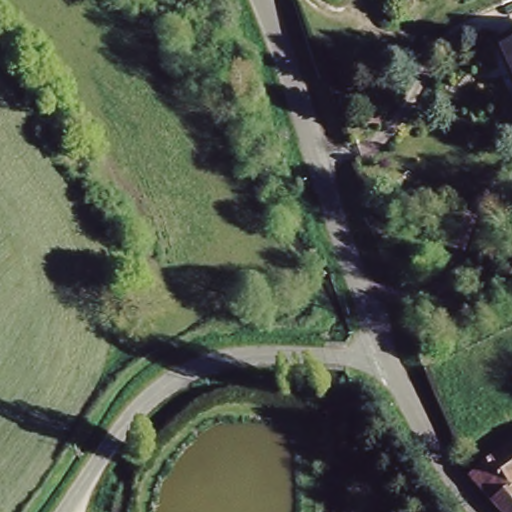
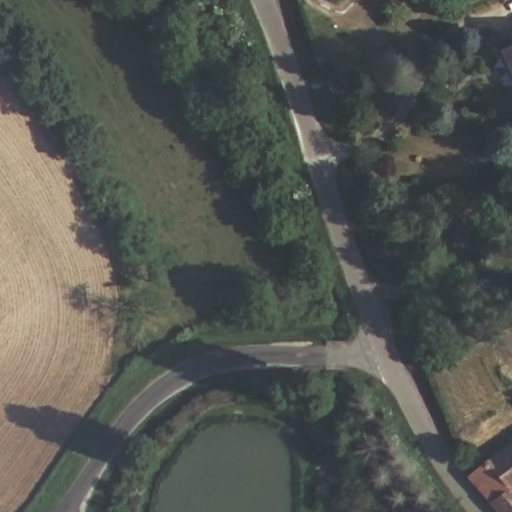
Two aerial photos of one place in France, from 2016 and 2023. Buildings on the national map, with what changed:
unchanged [(503,39),(512,35),(512,57),(503,39)]
unchanged [(512,442),(512,512),(490,512),(466,480),(512,442)]

